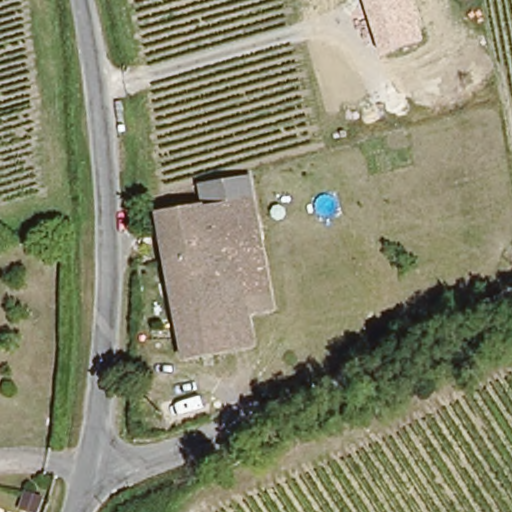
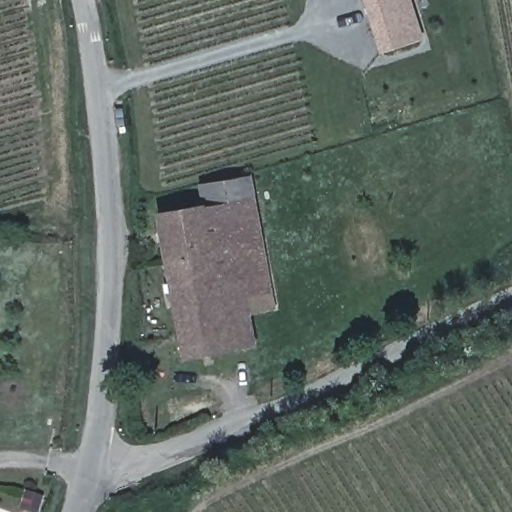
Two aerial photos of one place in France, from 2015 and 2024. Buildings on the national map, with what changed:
unchanged [(380,52),(364,0),(413,0),(422,38),(380,52)]
unchanged [(247,176),(255,226),(235,230),(245,311),(250,342),(222,347),(211,274),(201,203),(199,184),(218,181),(247,176)]
unchanged [(157,211),(201,203),(211,274),(167,280),(157,211)]
unchanged [(267,307),(245,311),(235,230),(255,226),(267,307)]
unchanged [(211,274),(222,347),(180,355),(167,280),(211,274)]

